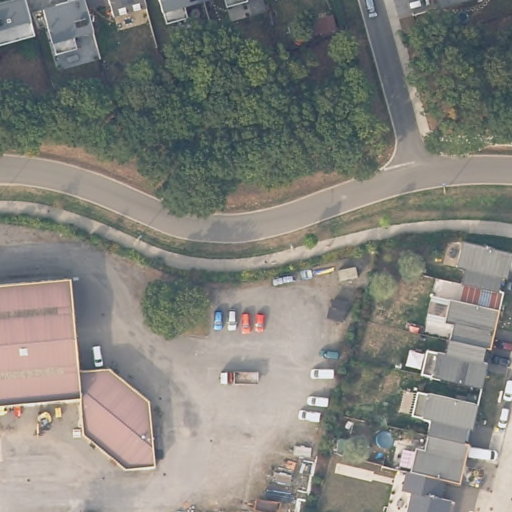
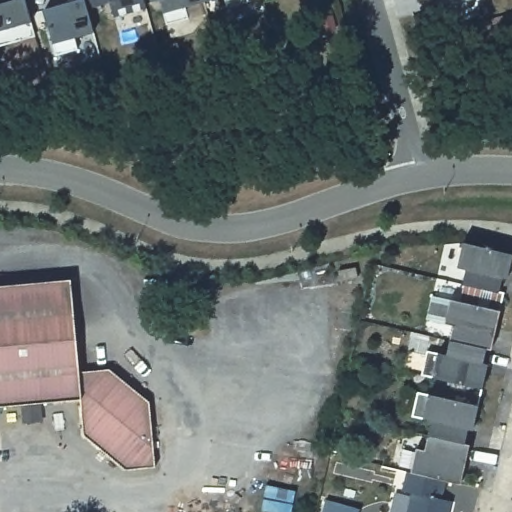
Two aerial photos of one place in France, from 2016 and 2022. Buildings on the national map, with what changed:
unchanged [(13,0),(23,0),(35,37),(0,44),(0,4),(13,0)]
unchanged [(66,3),(66,0),(83,0),(93,35),(78,38),(79,52),(55,57),(43,10),(66,3)]
unchanged [(144,14),(111,20),(105,4),(89,7),(88,0),(141,0),(144,14)]
unchanged [(162,15),(159,0),(214,0),(162,15)]
unchanged [(441,10),(437,0),(475,0),(441,10)]
unchanged [(512,253),(512,255),(507,277),(502,276),(499,290),(462,281),(465,266),(457,265),(463,241),(463,240),(485,246),(512,253)]
unchanged [(353,257),(355,267),(337,271),(335,260),(353,257)]
unchanged [(73,273),(82,365),(113,361),(153,393),(160,457),(130,460),(87,427),(84,391),(0,400),(0,281),(73,273)]
unchanged [(500,310),(493,337),(489,336),(485,351),(482,365),(487,366),(481,390),(472,388),(420,377),(426,353),(445,357),(449,342),(452,328),(444,326),(450,299),(500,310)]
unchanged [(418,446),(429,448),(432,432),(435,418),(415,415),(421,391),(481,405),(476,426),(471,425),(468,440),(464,455),(469,456),(463,480),(448,477),(414,468),(418,446)]
unchanged [(405,486),(410,467),(413,468),(414,468),(448,477),(444,495),(454,497),(450,512),(409,512),(415,489),(405,486)]
new [(360,508),(359,512),(322,512),(326,498),(360,508)]

